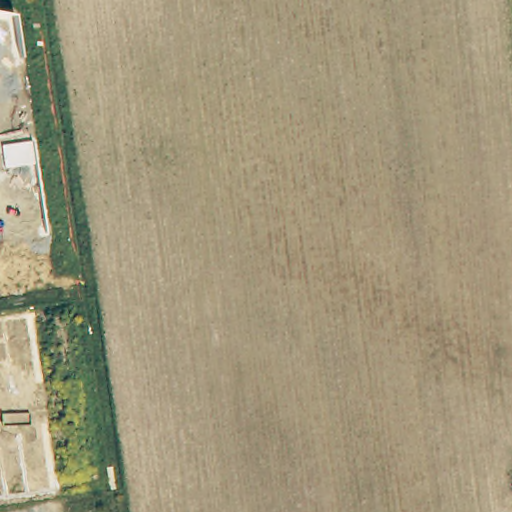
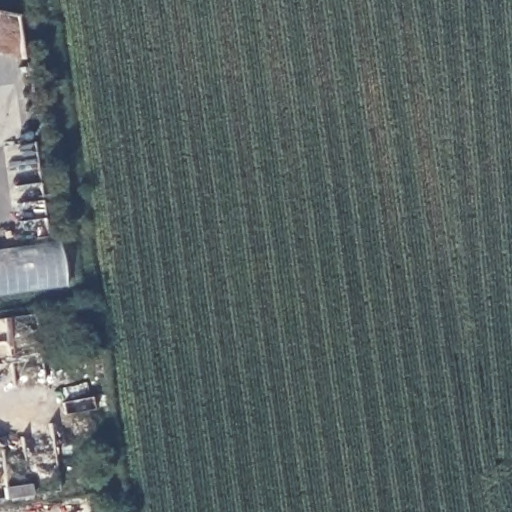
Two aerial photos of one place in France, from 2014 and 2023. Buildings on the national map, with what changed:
new [(0,294),(0,249),(59,240),(65,285),(0,294)]

